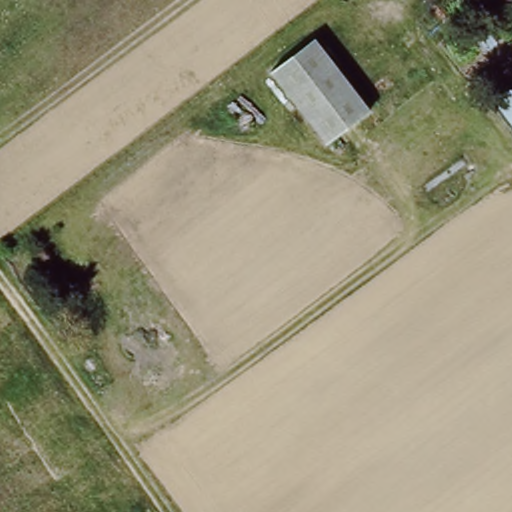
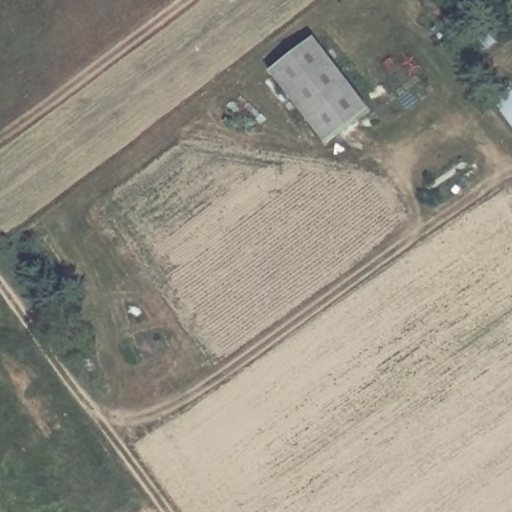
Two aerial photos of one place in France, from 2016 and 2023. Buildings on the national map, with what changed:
unchanged [(370,108),(325,143),(270,72),(315,38),(370,108)]

